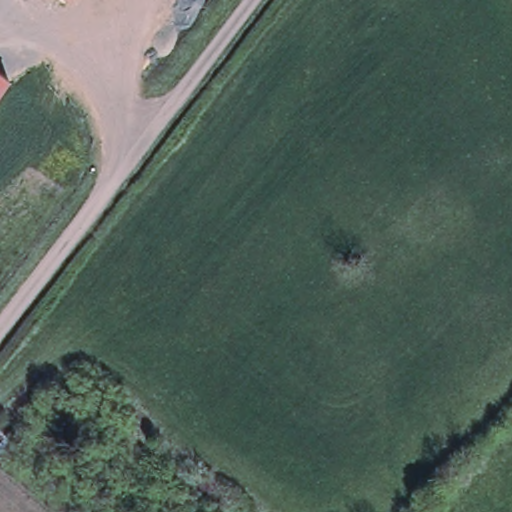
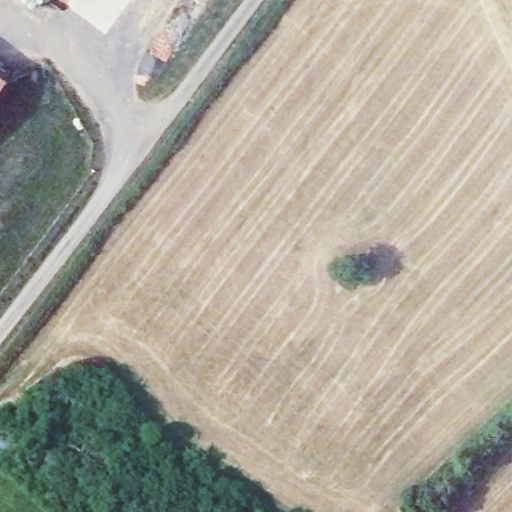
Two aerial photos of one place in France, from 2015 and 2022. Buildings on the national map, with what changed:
unchanged [(7,80),(0,90),(0,74),(7,80)]

